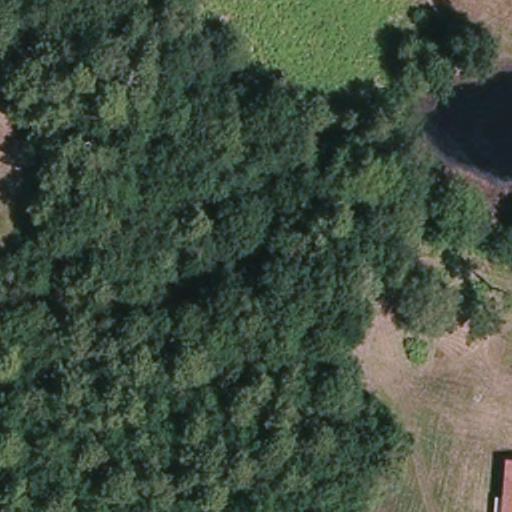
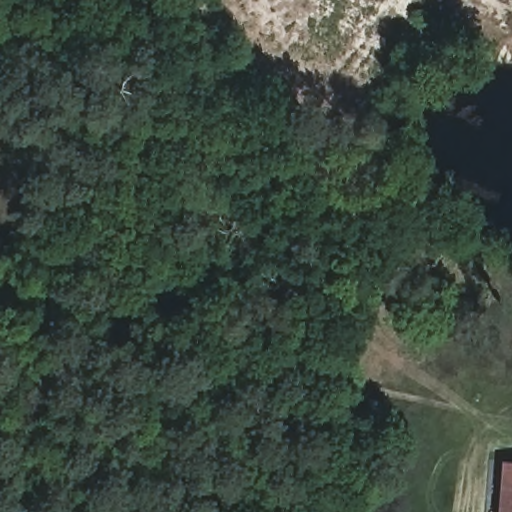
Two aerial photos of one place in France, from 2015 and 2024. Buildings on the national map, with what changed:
unchanged [(503,489),(506,455),(512,455),(512,490),(503,489)]
unchanged [(503,489),(512,490),(512,512),(501,512),(503,489)]

